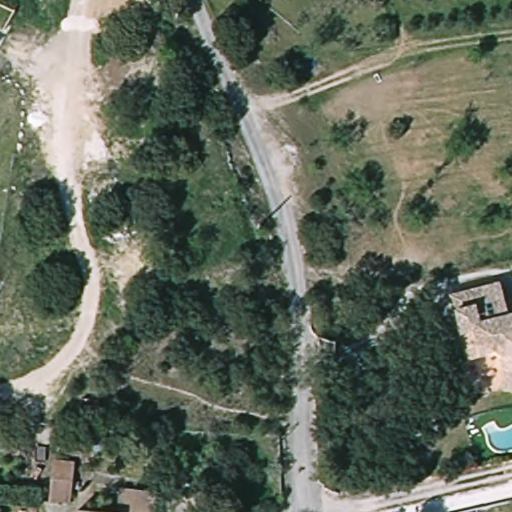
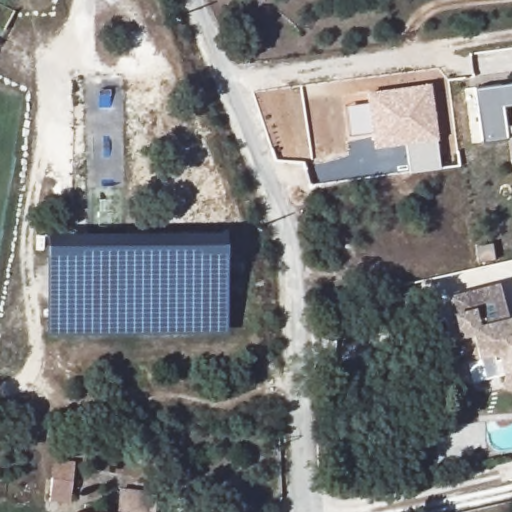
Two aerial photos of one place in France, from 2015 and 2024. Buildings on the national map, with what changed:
new [(367,102),(365,91),(431,82),(439,139),(436,139),(440,168),(410,172),(407,143),(374,147),(372,132),(350,135),(345,106),(367,102)]
new [(509,140),(483,143),(475,90),(512,84),(512,106),(502,107),(506,127),(512,126),(512,134),(508,135),(509,140)]
new [(228,232),(228,334),(47,336),(48,234),(228,232)]
unchanged [(499,282),(505,317),(512,315),(512,391),(497,385),(499,375),(497,362),(496,358),(495,355),(490,352),(487,351),(484,352),(478,353),(461,357),(448,291),(499,282)]
unchanged [(82,470),(81,512),(59,512),(60,470),(82,470)]
unchanged [(131,493),(164,493),(164,512),(131,512),(131,493)]

